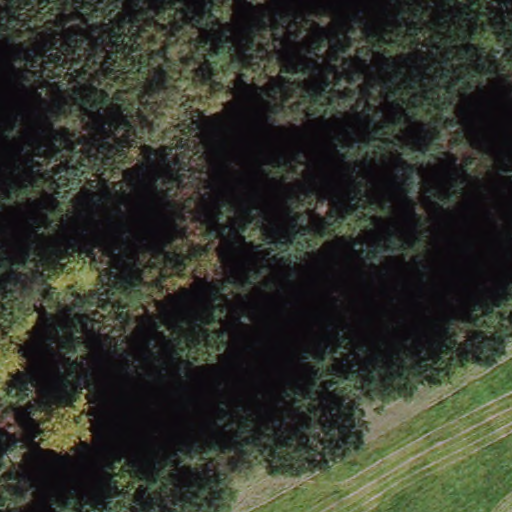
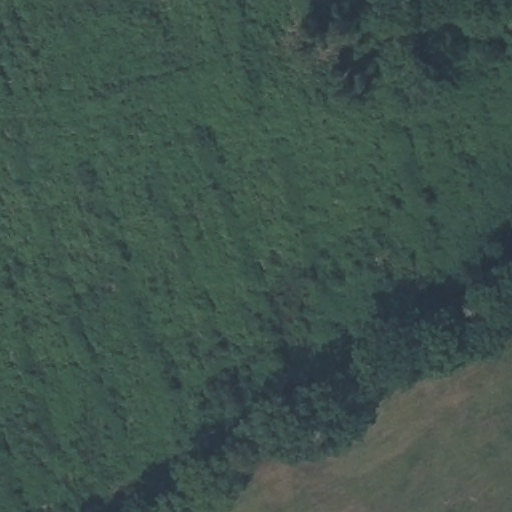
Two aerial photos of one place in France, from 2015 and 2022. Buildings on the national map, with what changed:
[]

